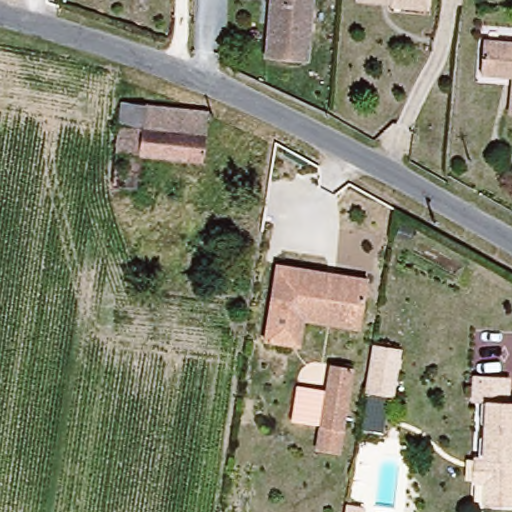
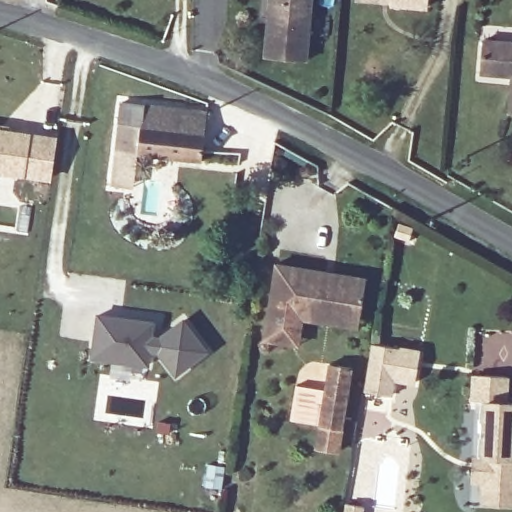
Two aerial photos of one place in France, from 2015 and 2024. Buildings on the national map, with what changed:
unchanged [(305,60),(263,57),(267,21),(270,0),(310,0),(305,60)]
unchanged [(428,8),(392,4),(392,0),(429,0),(428,8)]
unchanged [(512,42),(512,112),(506,112),(508,75),(477,72),(480,39),(512,42)]
unchanged [(199,164),(136,157),(131,189),(110,187),(118,105),(203,115),(199,164)]
new [(47,176),(0,170),(0,133),(52,140),(47,176)]
unchanged [(275,268),(364,282),(360,320),(296,312),(291,346),(265,341),(275,268)]
new [(100,313),(156,320),(154,335),(163,336),(186,319),(209,350),(178,372),(161,350),(152,349),(150,363),(95,356),(100,313)]
unchanged [(369,345),(399,350),(392,397),(360,390),(369,345)]
unchanged [(317,422),(290,420),(295,385),(324,387),(328,364),(352,367),(340,453),(313,450),(317,422)]
unchanged [(464,460),(468,460),(472,403),(461,402),(462,377),(495,379),(494,405),(512,407),(512,462),(507,462),(506,506),(472,504),(473,483),(462,483),(464,460)]
unchanged [(342,512),(343,505),(358,506),(358,512),(342,512)]

